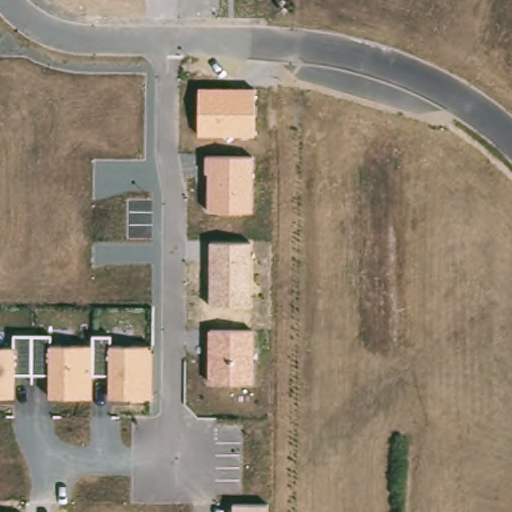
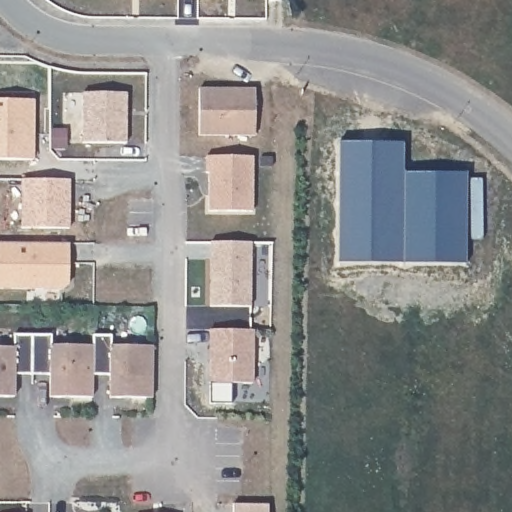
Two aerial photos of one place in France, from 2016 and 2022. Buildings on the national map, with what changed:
unchanged [(257,89),(256,137),(197,136),(198,88),(257,89)]
new [(82,92),(126,93),(126,143),(82,143),(82,92)]
new [(34,160),(0,160),(0,100),(34,100),(34,160)]
new [(338,142),(402,142),(402,264),(337,263),(338,142)]
unchanged [(253,158),(254,213),(207,212),(207,174),(204,174),(204,157),(253,158)]
new [(465,172),(466,264),(402,264),(402,173),(465,172)]
new [(21,181),(70,181),(69,229),(21,229),(21,181)]
unchanged [(250,244),(251,308),(209,307),(210,243),(250,244)]
unchanged [(208,384),(208,329),(254,328),(254,382),(208,384)]
unchanged [(0,347),(15,347),(15,333),(51,333),(52,346),(91,346),(92,335),(111,334),(111,345),(147,345),(151,351),(152,398),(109,397),(108,374),(90,375),(90,398),(49,398),(49,373),(15,373),(15,396),(0,396),(0,347)]
new [(265,504),(265,512),(229,512),(230,504),(265,504)]

